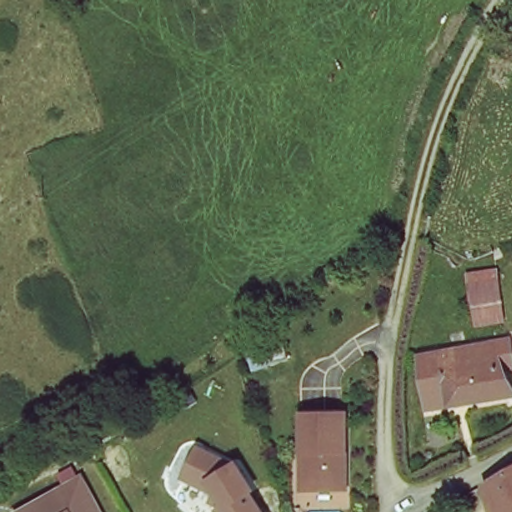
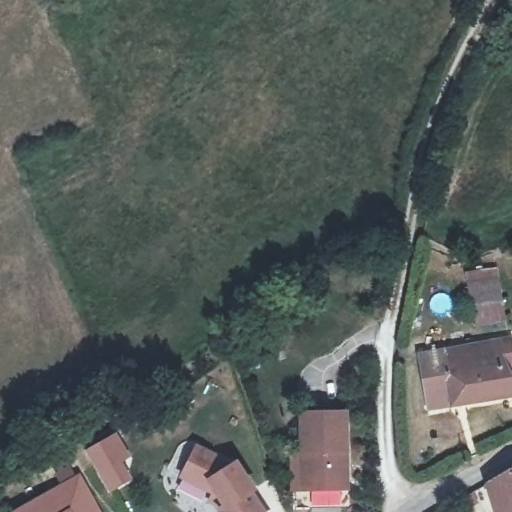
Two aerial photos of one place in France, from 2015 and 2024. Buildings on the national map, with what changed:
unchanged [(472,321),(471,277),(501,273),(504,319),(473,323),(472,321)]
unchanged [(505,346),(507,373),(495,375),(504,391),(441,407),(438,390),(420,390),(419,360),(479,348),(505,346)]
unchanged [(303,455),(299,417),(344,414),(351,489),(314,492),(306,492),(303,455)]
new [(127,454),(118,460),(131,476),(111,490),(86,455),(113,435),(127,454)]
unchanged [(227,460),(230,458),(249,483),(246,485),(268,512),(224,512),(218,505),(224,501),(214,490),(178,475),(189,446),(227,460)]
unchanged [(494,482),(502,478),(512,473),(512,512),(501,512),(494,482)]
unchanged [(73,476),(95,512),(14,512),(73,476)]

